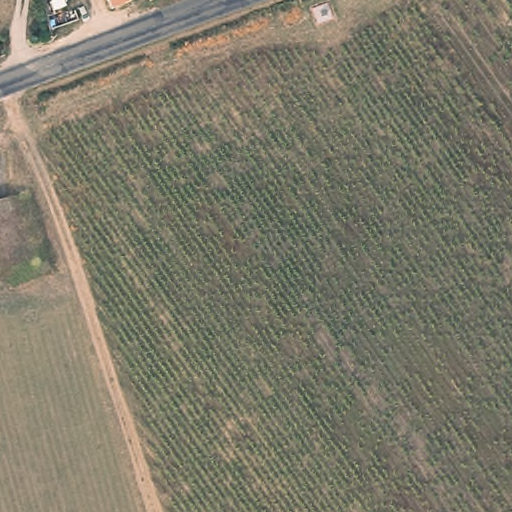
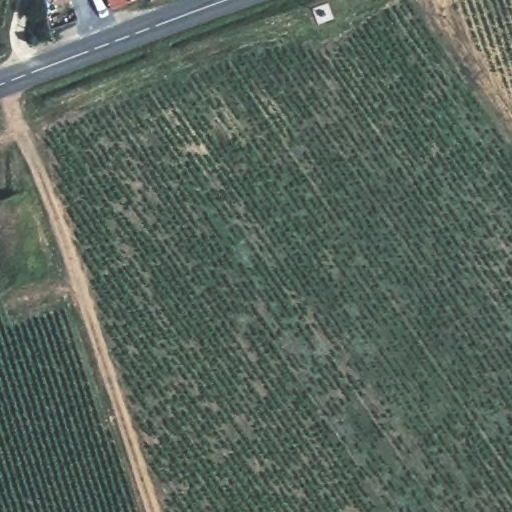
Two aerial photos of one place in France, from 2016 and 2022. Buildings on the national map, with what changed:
unchanged [(105,0),(135,0),(109,10),(105,0)]

